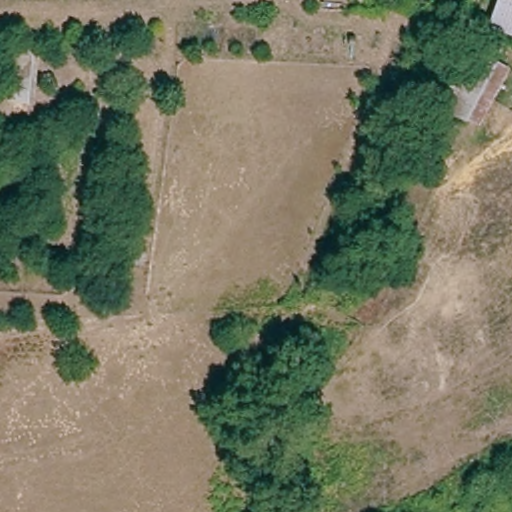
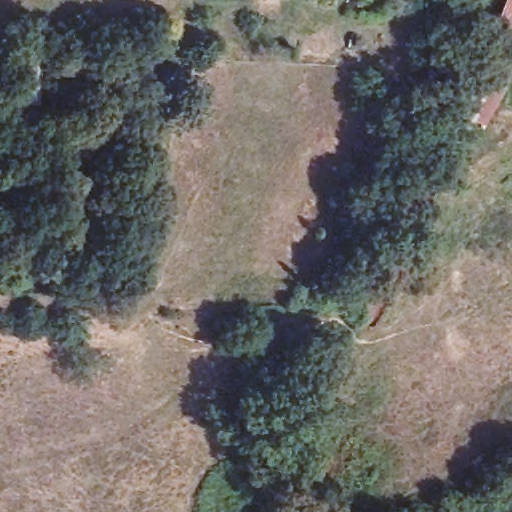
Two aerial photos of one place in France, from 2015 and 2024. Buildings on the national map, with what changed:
unchanged [(488,26),(491,17),(497,0),(512,0),(512,35),(488,26)]
unchanged [(463,48),(509,68),(476,127),(435,112),(463,48)]
unchanged [(9,54),(31,56),(28,99),(7,98),(9,54)]

